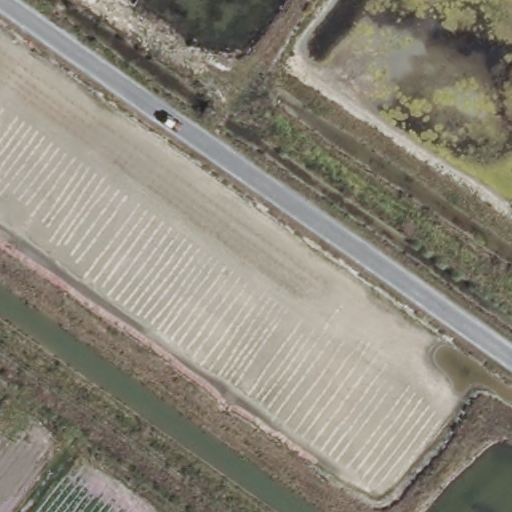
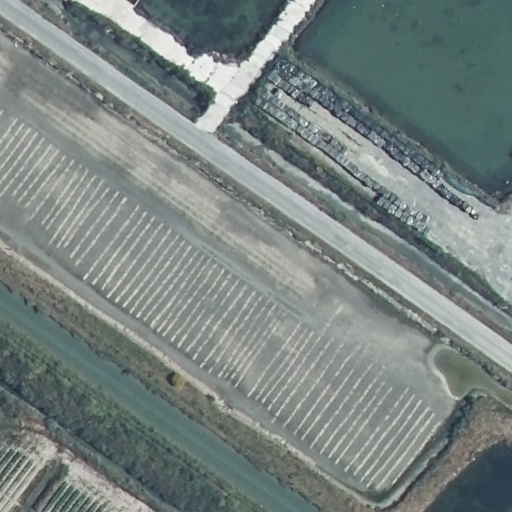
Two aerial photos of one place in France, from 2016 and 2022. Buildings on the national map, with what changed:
[]

